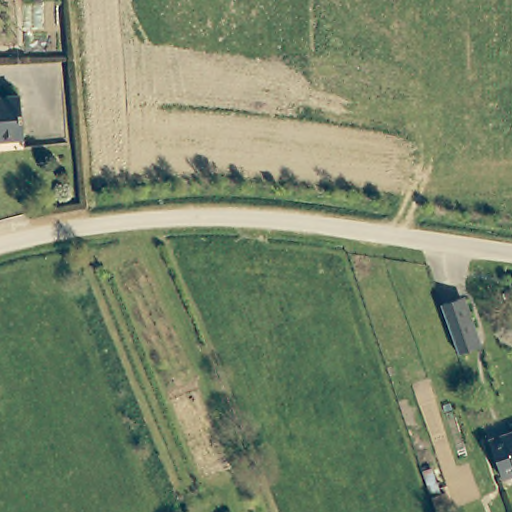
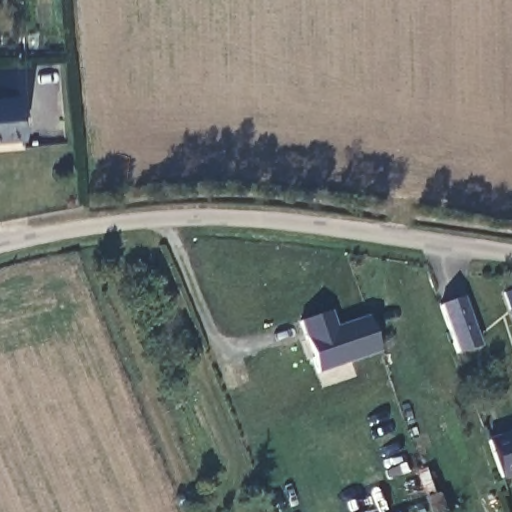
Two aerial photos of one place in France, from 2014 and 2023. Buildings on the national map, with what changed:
unchanged [(0,149),(0,96),(20,94),(25,146),(0,149)]
unchanged [(442,305),(466,297),(481,345),(458,353),(442,305)]
new [(333,311),(339,328),(371,317),(383,352),(320,373),(303,321),(333,311)]
unchanged [(512,480),(503,483),(488,442),(512,434),(512,480)]
new [(440,490),(445,488),(452,509),(444,512),(438,512),(422,466),(431,463),(440,490)]

